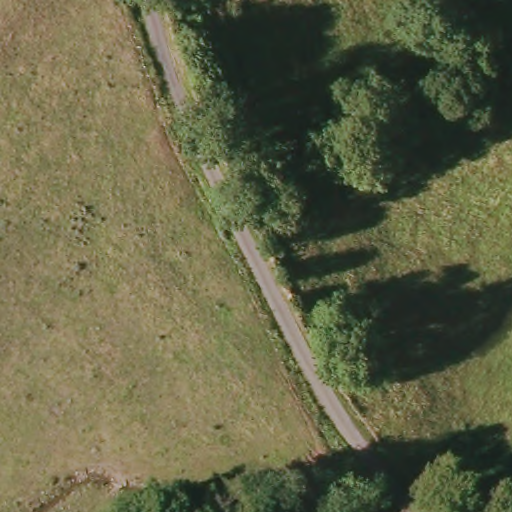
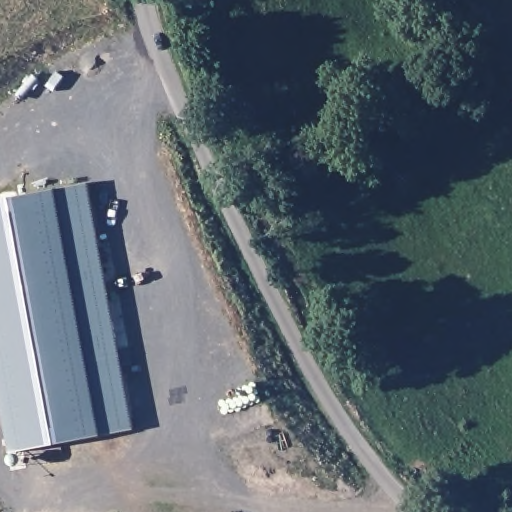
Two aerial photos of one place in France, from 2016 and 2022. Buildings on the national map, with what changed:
new [(0,394),(0,199),(87,182),(134,428),(22,450),(24,458),(24,461),(23,463),(21,465),(19,466),(16,467),(13,465),(12,464),(12,462),(11,451),(0,394)]

